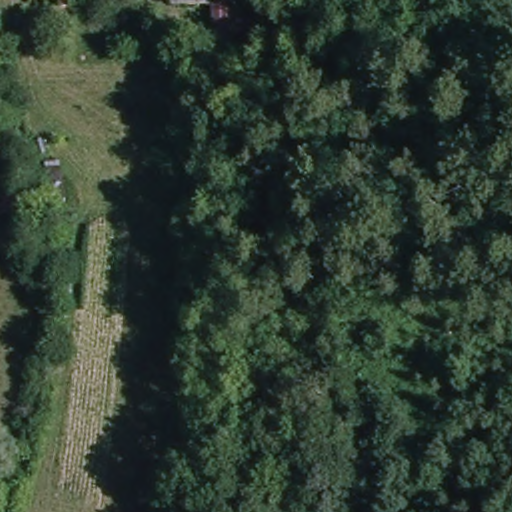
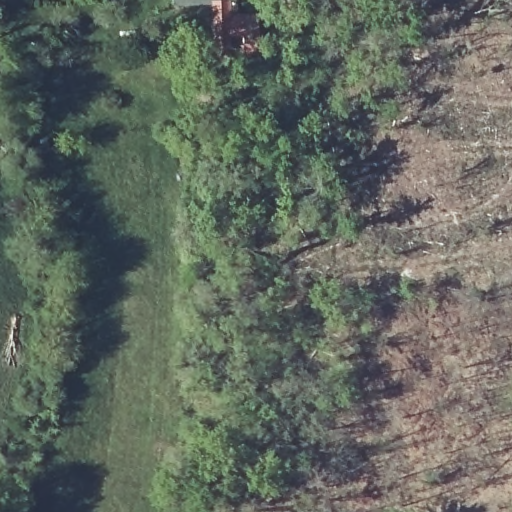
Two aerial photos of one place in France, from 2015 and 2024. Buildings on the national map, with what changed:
unchanged [(195,16),(194,0),(238,0),(239,16),(223,16),(222,9),(209,9),(210,15),(195,16)]

